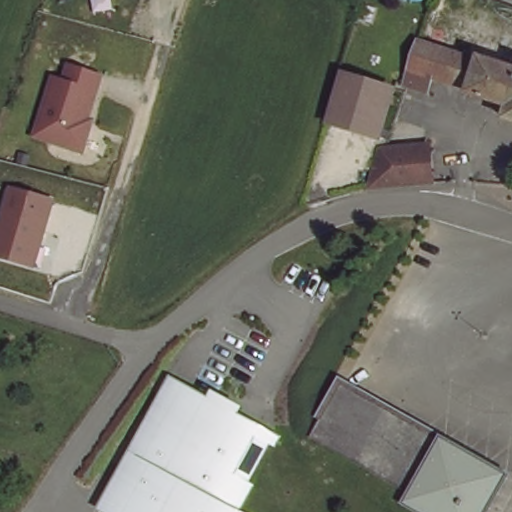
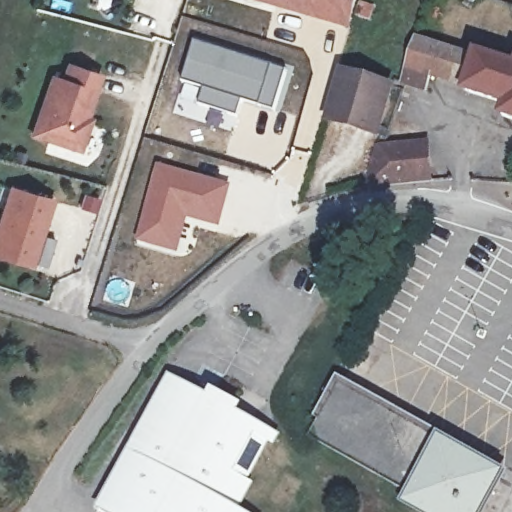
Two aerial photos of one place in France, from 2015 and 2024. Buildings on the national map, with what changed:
new [(241,0),(357,0),(375,6),(370,21),(353,15),(349,29),(241,0)]
unchanged [(481,50),(484,45),(512,54),(512,106),(508,105),(511,93),(472,80),(472,77),(435,64),(430,80),(409,73),(422,30),(481,50)]
new [(195,39),(287,70),(275,111),(242,101),(237,117),(197,103),(202,87),(180,80),(195,39)]
unchanged [(78,147),(27,130),(45,71),(57,74),(63,57),(99,67),(78,147)]
unchanged [(395,88),(380,139),(326,122),(342,73),(395,88)]
unchanged [(362,186),(378,144),(384,145),(427,143),(430,180),(362,186)]
new [(157,164),(230,184),(219,227),(187,219),(177,251),(135,238),(157,164)]
unchanged [(32,268),(0,258),(0,206),(7,185),(54,198),(32,268)]
unchanged [(268,442),(250,475),(255,478),(241,505),(254,512),(109,512),(94,503),(168,371),(205,392),(209,387),(240,403),(239,411),(281,431),(275,445),(268,442)]
unchanged [(307,433),(336,378),(500,471),(477,512),(429,512),(425,509),(404,498),(408,490),(307,433)]

